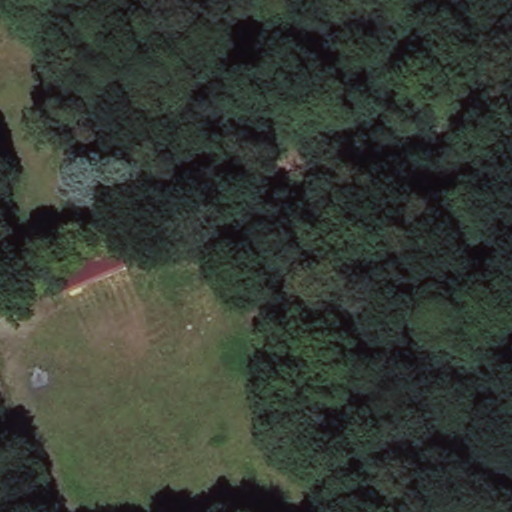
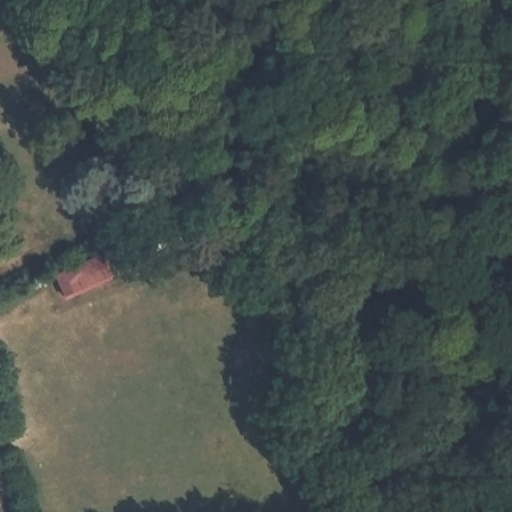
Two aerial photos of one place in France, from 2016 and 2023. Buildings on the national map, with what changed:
unchanged [(58,273),(121,247),(129,268),(66,297),(58,273)]

